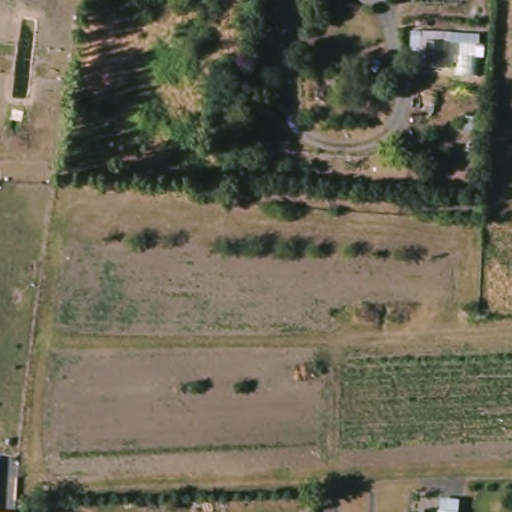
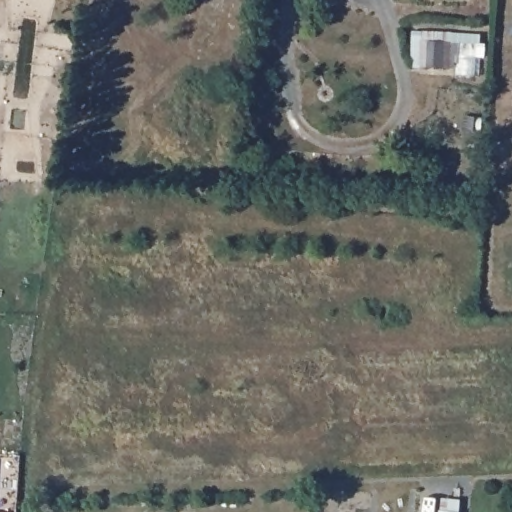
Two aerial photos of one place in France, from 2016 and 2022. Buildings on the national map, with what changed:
unchanged [(449,502),(460,504),(459,512),(448,512),(449,502)]

